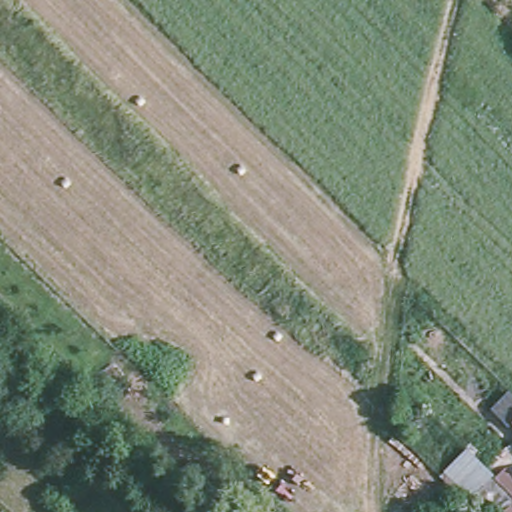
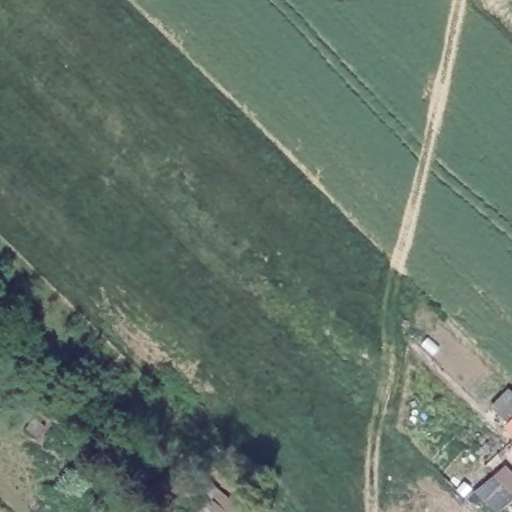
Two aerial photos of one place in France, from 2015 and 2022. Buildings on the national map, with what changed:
unchanged [(494,512),(490,512),(471,493),(488,476),(509,497),(494,512)]

